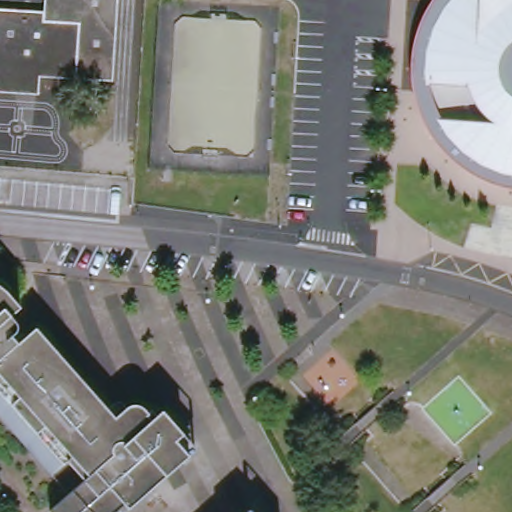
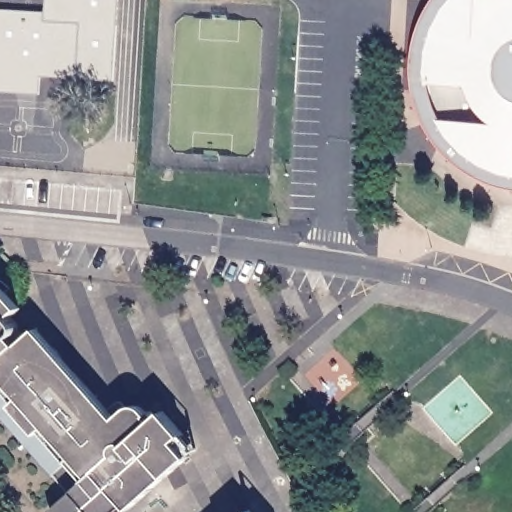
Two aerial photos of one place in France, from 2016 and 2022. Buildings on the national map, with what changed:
unchanged [(74,77),(77,25),(42,22),(43,13),(44,0),(118,0),(115,80),(74,77)]
unchanged [(498,186),(479,179),(462,168),(447,156),(432,139),(420,120),(413,99),(410,78),(410,56),(413,36),(419,19),(429,1),(429,0),(512,0),(512,189),(498,186)]
unchanged [(42,22),(77,25),(74,77),(38,76),(37,93),(0,91),(0,10),(7,11),(43,13),(42,22)]
unchanged [(49,508),(84,478),(70,462),(55,477),(42,462),(0,415),(0,283),(5,288),(14,297),(20,304),(17,306),(25,316),(25,317),(25,320),(24,322),(22,325),(20,327),(26,333),(35,325),(115,416),(123,408),(126,406),(130,404),(133,403),(138,403),(140,405),(144,407),(151,417),(161,408),(182,432),(195,447),(188,453),(165,473),(152,486),(147,481),(152,486),(128,507),(123,512),(53,512),(49,508)]
unchanged [(248,511),(249,512),(247,512),(248,511)]

